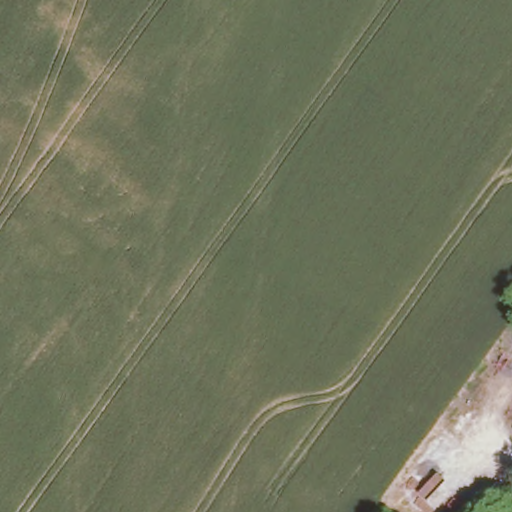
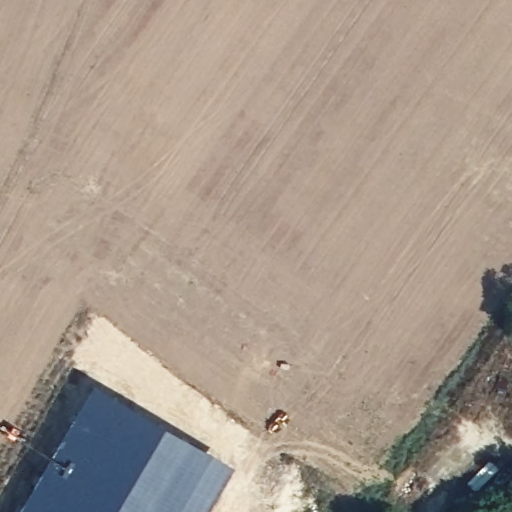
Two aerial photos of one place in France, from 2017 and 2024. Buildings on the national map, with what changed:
new [(92,381),(234,461),(204,512),(16,512),(92,381)]

